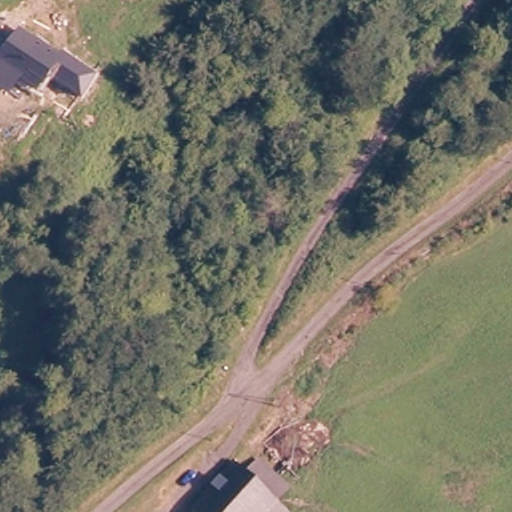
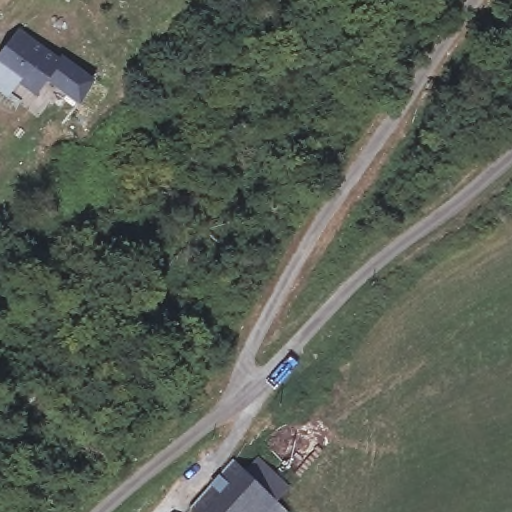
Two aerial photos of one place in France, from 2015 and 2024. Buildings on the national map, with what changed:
unchanged [(1,85),(11,69),(2,63),(22,31),(65,56),(70,51),(106,69),(94,90),(60,74),(41,108),(1,85)]
unchanged [(245,477),(257,466),(288,495),(275,508),(271,512),(189,512),(232,466),(245,477)]
unchanged [(279,512),(271,512),(275,508),(279,512)]

